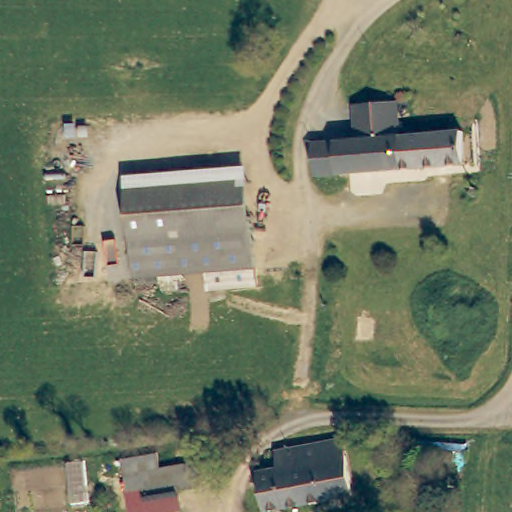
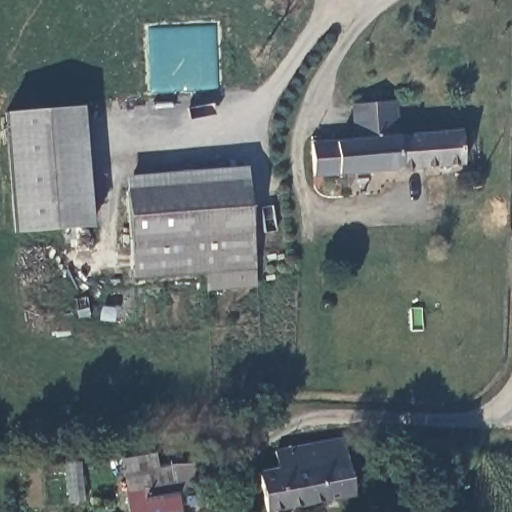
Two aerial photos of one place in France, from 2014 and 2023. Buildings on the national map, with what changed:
unchanged [(401,168),(316,175),(315,140),(355,137),(354,103),(364,102),(395,100),(397,135),(399,134),(401,168)]
new [(92,225),(15,234),(4,113),(81,106),(92,225)]
unchanged [(399,134),(464,129),(467,162),(401,168),(399,134)]
unchanged [(126,191),(245,181),(249,231),(130,241),(126,191)]
unchanged [(251,267),(131,276),(130,241),(249,231),(251,267)]
unchanged [(257,473),(276,470),(272,452),(332,441),(340,441),(351,496),(264,511),(257,473)]
unchanged [(190,484),(132,493),(127,468),(186,459),(190,484)]

